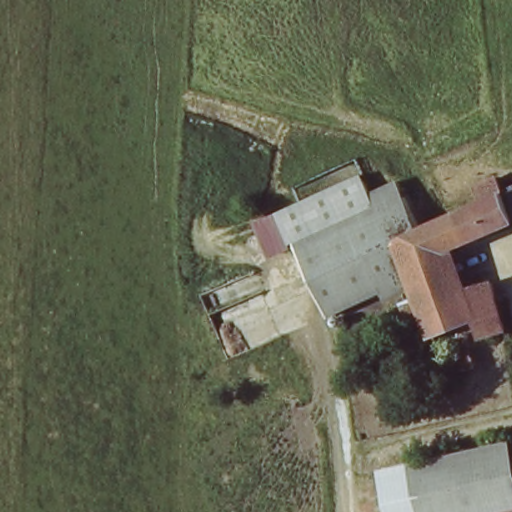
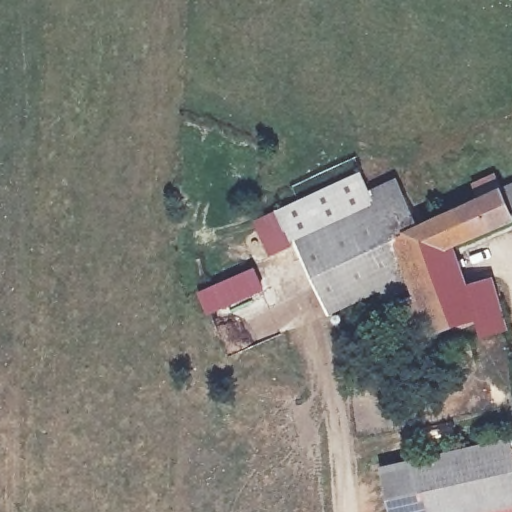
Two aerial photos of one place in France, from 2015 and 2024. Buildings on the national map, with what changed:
unchanged [(329,316),(278,210),(365,170),(371,189),(403,177),(419,225),(398,232),(412,282),(329,316)]
unchanged [(458,251),(472,292),(499,287),(511,337),(481,340),(476,321),(431,335),(426,321),(412,324),(402,299),(414,291),(412,282),(398,232),(419,225),(479,202),(473,183),(497,178),(504,187),(512,185),(512,228),(458,251)]
new [(256,268),(266,292),(209,316),(199,293),(256,268)]
unchanged [(479,368),(458,373),(450,346),(472,341),(479,368)]
unchanged [(412,462),(512,436),(512,512),(424,512),(412,462)]

